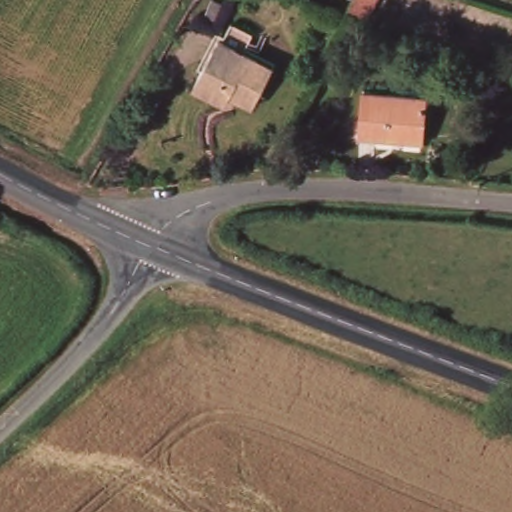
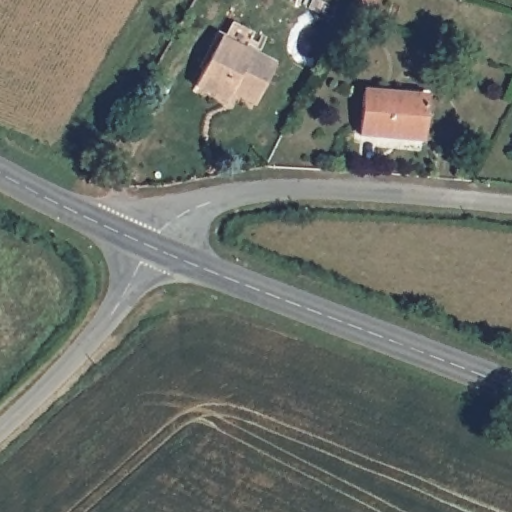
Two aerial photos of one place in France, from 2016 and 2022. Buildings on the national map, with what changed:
unchanged [(362,16),(342,5),(345,0),(371,0),(362,16)]
unchanged [(272,68),(254,107),(230,96),(223,108),(199,95),(191,91),(217,39),(272,68)]
unchanged [(430,94),(426,139),(366,134),(370,88),(430,94)]

